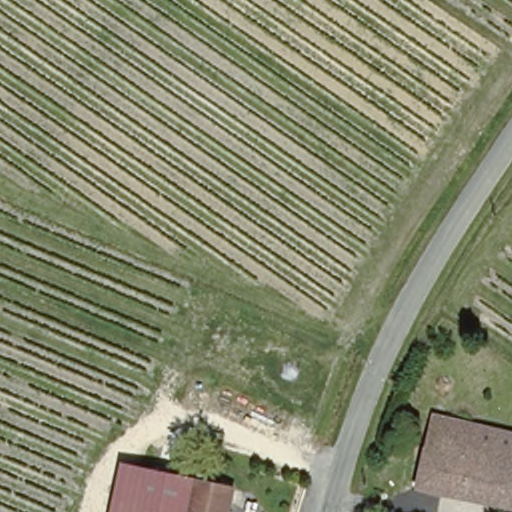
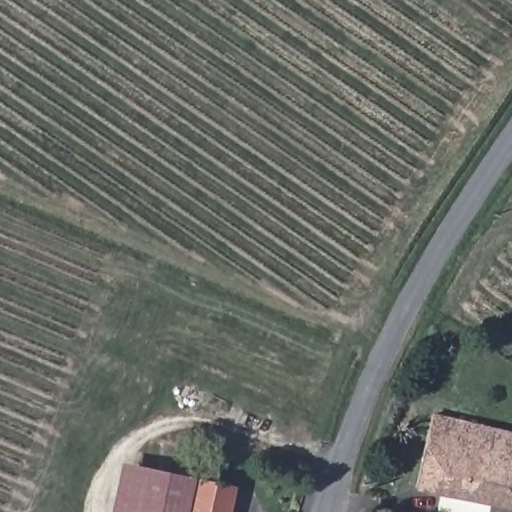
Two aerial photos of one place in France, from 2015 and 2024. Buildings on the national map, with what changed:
unchanged [(512,512),(510,512),(418,486),(438,414),(512,435),(512,512)]
unchanged [(223,487),(218,512),(120,512),(131,466),(146,468),(223,487)]

